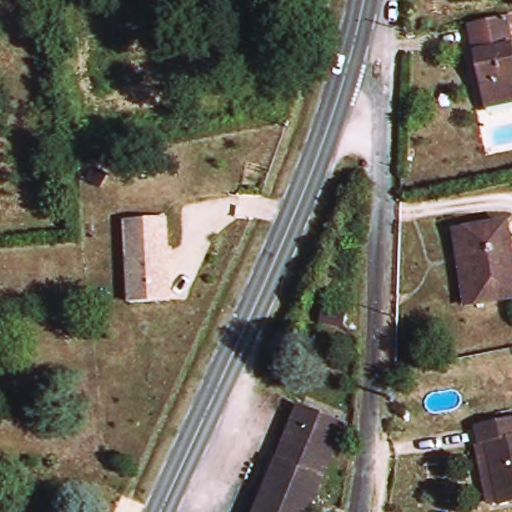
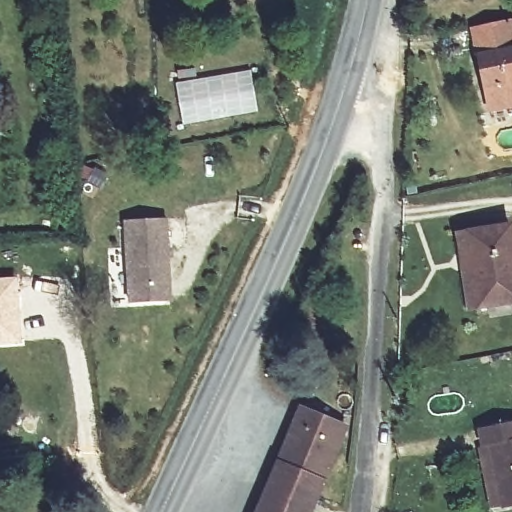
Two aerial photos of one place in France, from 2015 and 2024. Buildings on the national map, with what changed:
unchanged [(512,23),(512,31),(509,31),(512,45),(512,108),(487,113),(476,58),(489,55),(484,29),(508,24),(512,23)]
new [(178,81),(176,69),(194,66),(196,78),(251,69),(258,111),(183,124),(175,81),(178,81)]
unchanged [(173,285),(176,285),(178,303),(138,308),(128,226),(168,221),(171,252),(169,253),(173,285)]
unchanged [(471,235),(512,229),(512,305),(482,310),(472,311),(461,237),(471,235)]
new [(18,276),(23,345),(0,346),(0,277),(18,276)]
unchanged [(318,311),(343,317),(339,334),(314,328),(318,311)]
unchanged [(299,411),(344,430),(310,512),(258,512),(299,411)]
unchanged [(481,450),(478,432),(512,424),(512,477),(495,481),(489,449),(481,450)]
unchanged [(495,481),(512,477),(512,509),(501,511),(495,481)]

